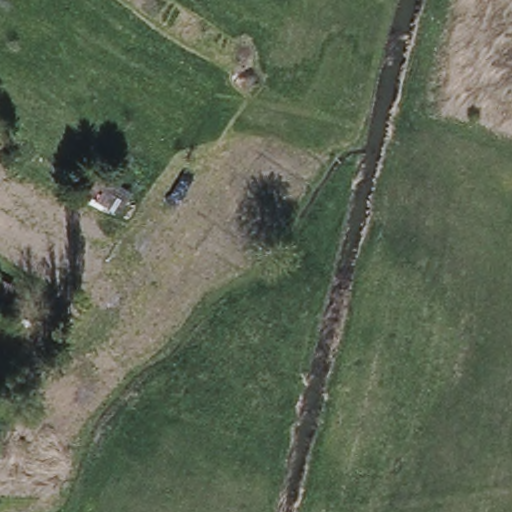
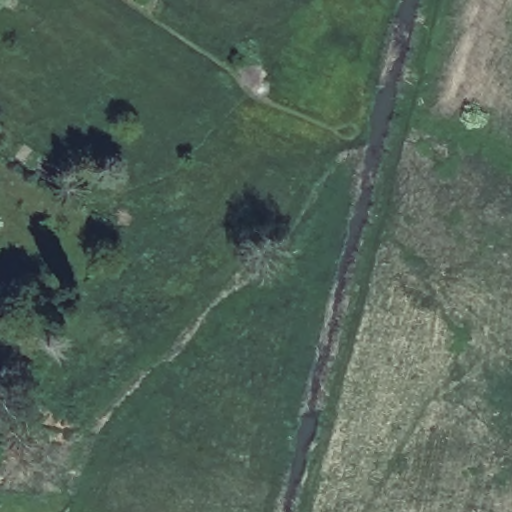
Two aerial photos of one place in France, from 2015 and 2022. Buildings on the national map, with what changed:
unchanged [(135,192),(120,215),(80,198),(93,171),(135,192)]
unchanged [(0,310),(0,276),(16,283),(0,310)]
unchanged [(0,344),(5,348),(0,356),(0,344)]

